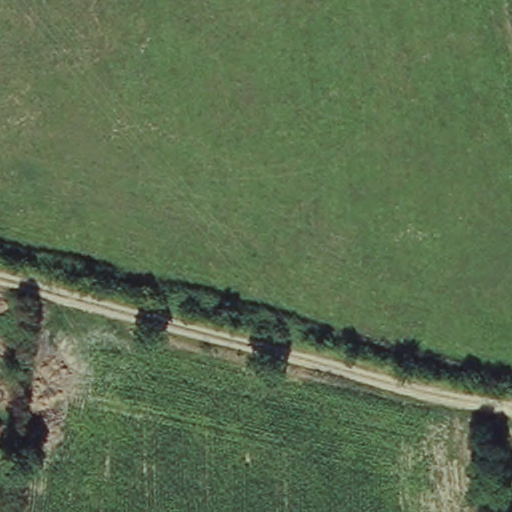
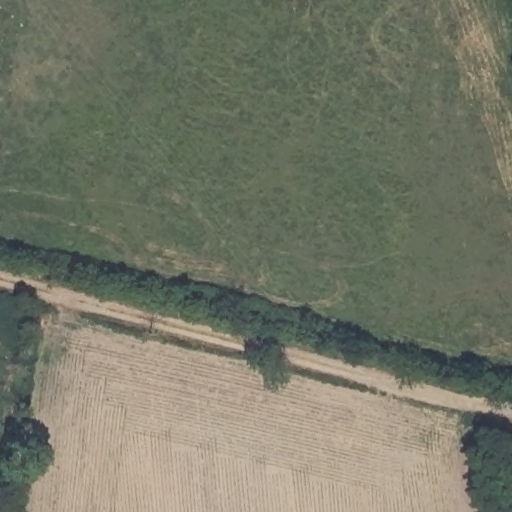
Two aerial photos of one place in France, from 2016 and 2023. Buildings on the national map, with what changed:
[]

